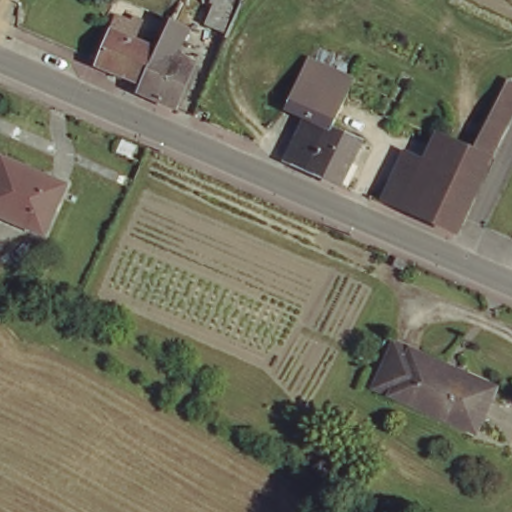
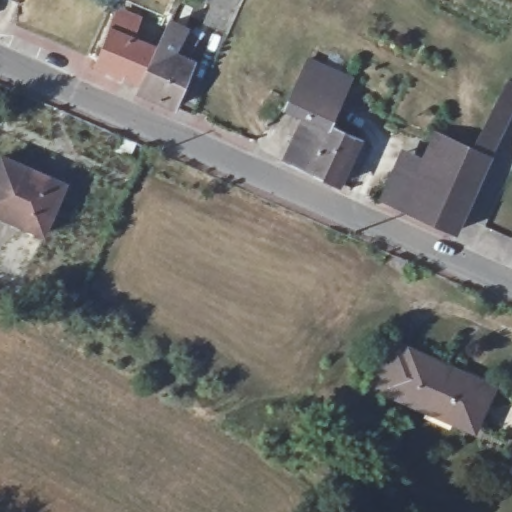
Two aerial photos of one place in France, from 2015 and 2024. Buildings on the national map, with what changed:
unchanged [(223,34),(199,24),(208,0),(238,0),(223,34)]
unchanged [(98,64),(122,17),(147,32),(139,47),(151,55),(138,84),(98,64)]
unchanged [(166,21),(186,30),(173,61),(191,69),(173,109),(133,95),(138,84),(151,55),(166,21)]
unchanged [(286,157),(309,110),(290,102),(310,55),(354,74),(336,122),(364,134),(341,184),(286,157)]
unchanged [(506,79),(512,81),(512,116),(497,157),(476,148),(506,79)]
unchanged [(497,157),(462,232),(418,212),(439,165),(452,137),(476,148),(497,157)]
unchanged [(408,151),(439,165),(418,212),(387,197),(408,151)]
unchanged [(68,184),(43,235),(0,214),(0,163),(5,152),(68,184)]
unchanged [(402,345),(418,352),(421,347),(455,362),(453,368),(499,390),(485,422),(439,401),(434,410),(384,387),(402,345)]

